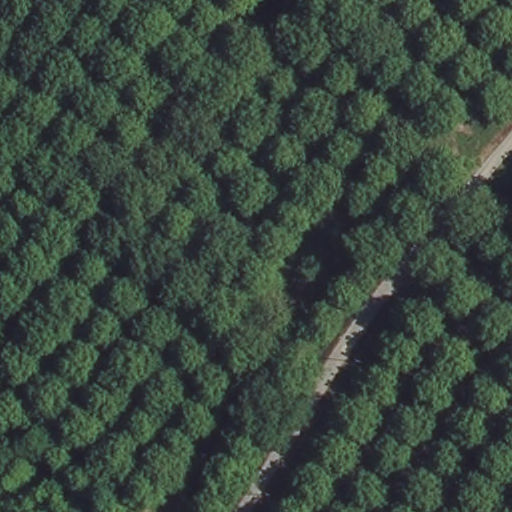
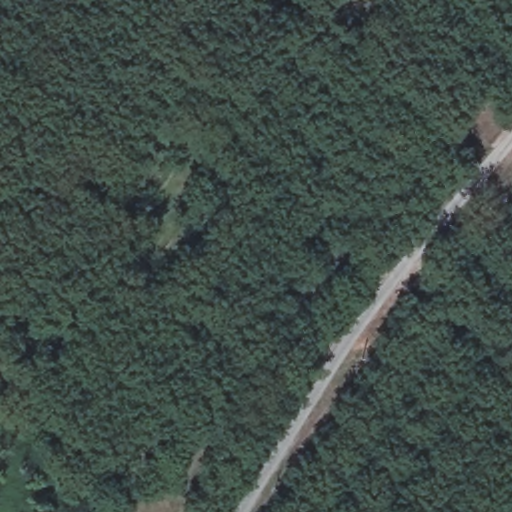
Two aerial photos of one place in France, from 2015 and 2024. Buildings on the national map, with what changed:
[]

